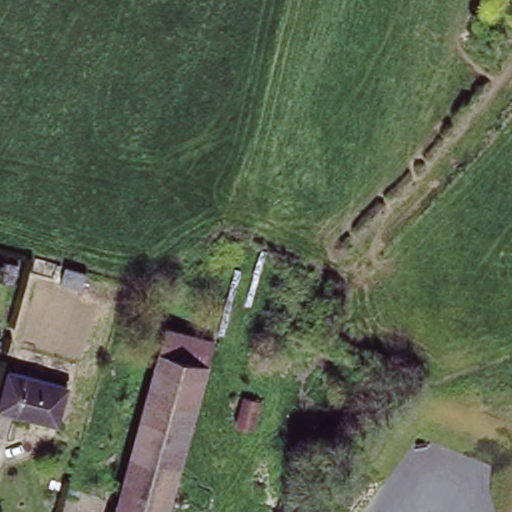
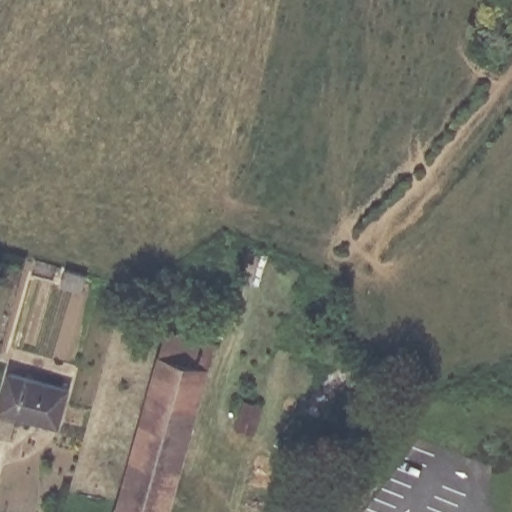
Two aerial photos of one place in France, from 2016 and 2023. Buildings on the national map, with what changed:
unchanged [(78,272),(72,288),(52,284),(58,266),(78,272)]
unchanged [(227,333),(228,334),(190,450),(140,434),(177,318),(227,333)]
unchanged [(70,384),(59,418),(2,400),(12,366),(70,384)]
unchanged [(270,399),(265,429),(247,426),(253,395),(270,399)]
unchanged [(170,512),(114,512),(117,502),(140,434),(190,450),(170,512)]
unchanged [(305,446),(310,435),(315,436),(315,440),(292,512),(277,512),(298,445),(305,446)]

